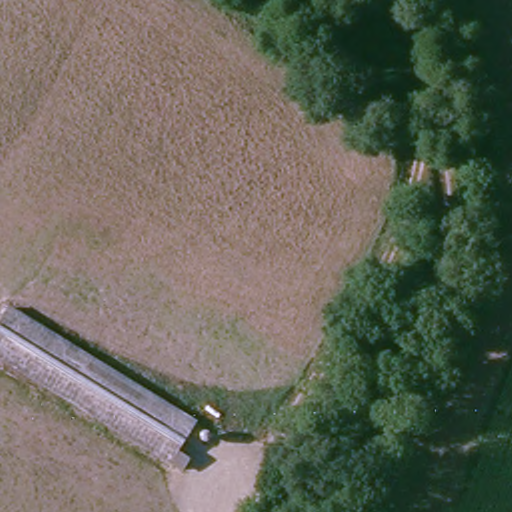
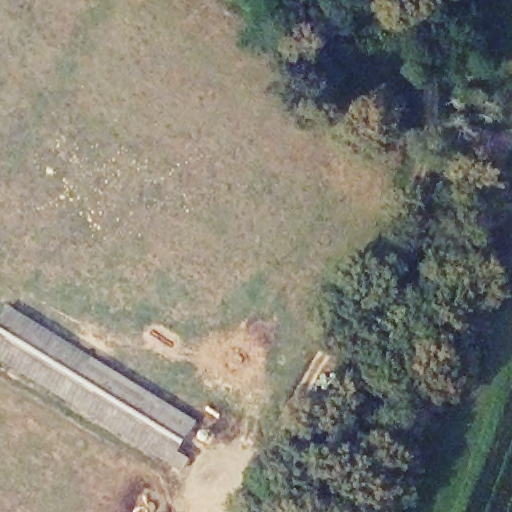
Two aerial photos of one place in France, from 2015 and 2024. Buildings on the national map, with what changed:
unchanged [(12,307),(203,422),(184,454),(197,462),(191,472),(0,356),(0,327),(12,307)]

